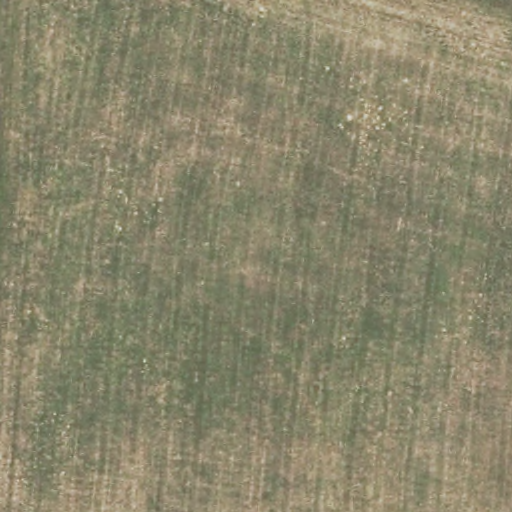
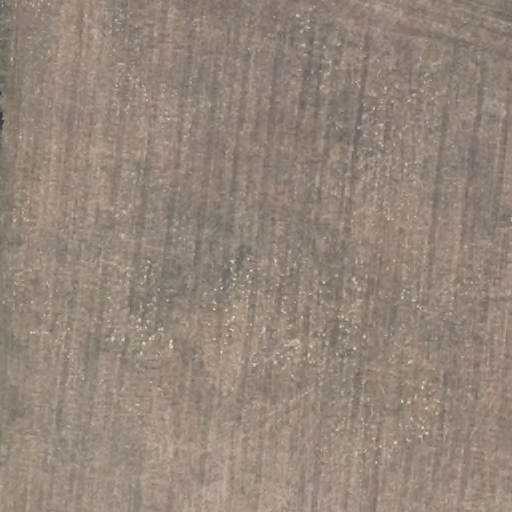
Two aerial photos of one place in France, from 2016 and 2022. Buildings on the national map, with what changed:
[]

